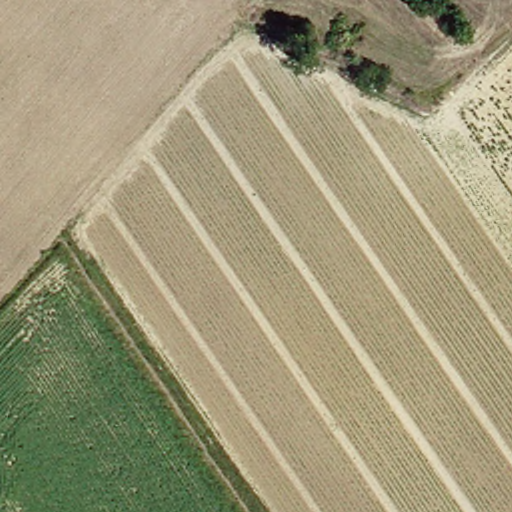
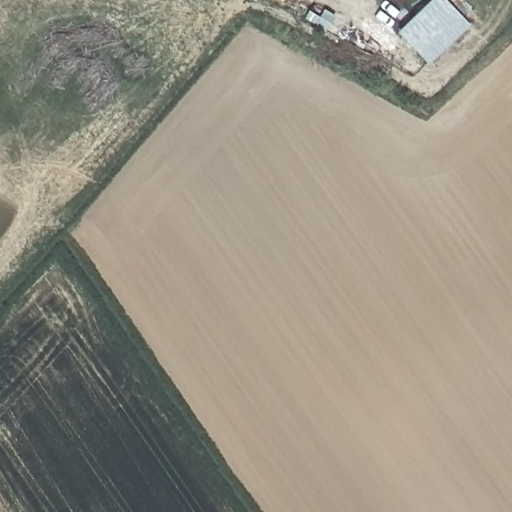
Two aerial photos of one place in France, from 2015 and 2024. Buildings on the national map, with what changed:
new [(397,34),(432,0),(445,0),(470,27),(427,67),(397,34)]

